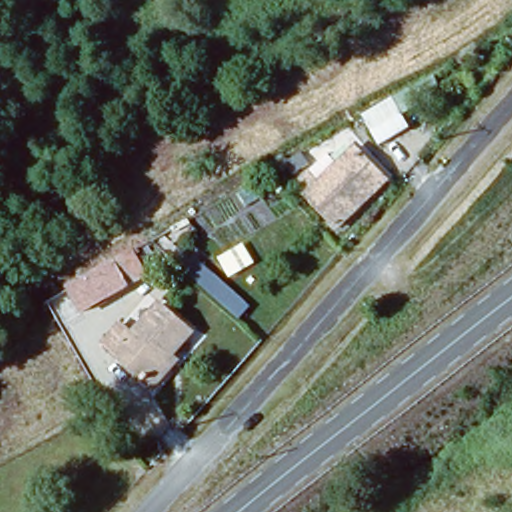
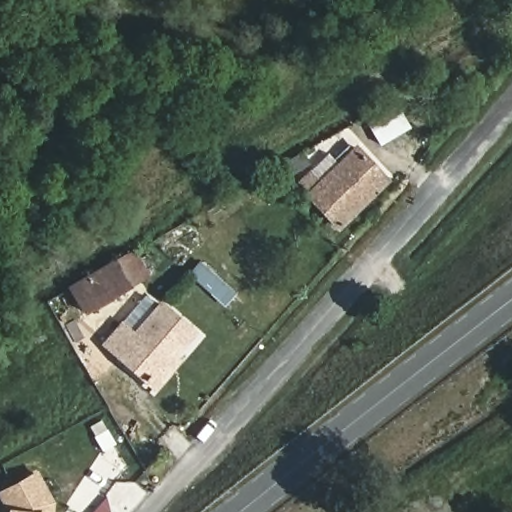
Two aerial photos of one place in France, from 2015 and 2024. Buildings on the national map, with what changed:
unchanged [(408,129),(380,147),(363,123),(393,103),(408,129)]
unchanged [(339,227),(305,195),(356,147),(388,178),(339,227)]
unchanged [(67,288),(126,255),(137,250),(149,271),(140,277),(80,311),(67,288)]
unchanged [(165,366),(170,370),(154,389),(102,344),(117,326),(130,335),(156,304),(192,333),(165,366)]
new [(4,511),(0,504),(0,491),(30,474),(46,504),(46,512),(4,512),(4,511)]

